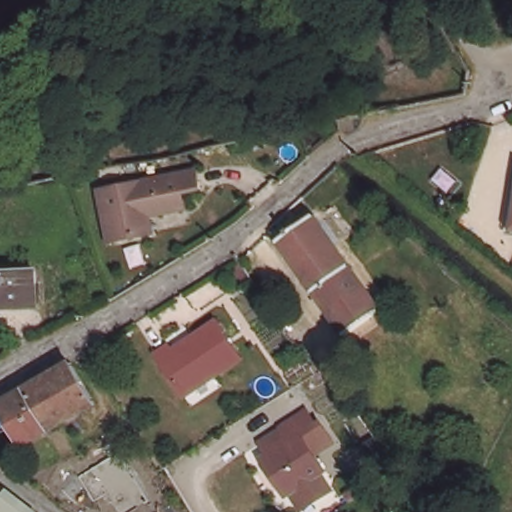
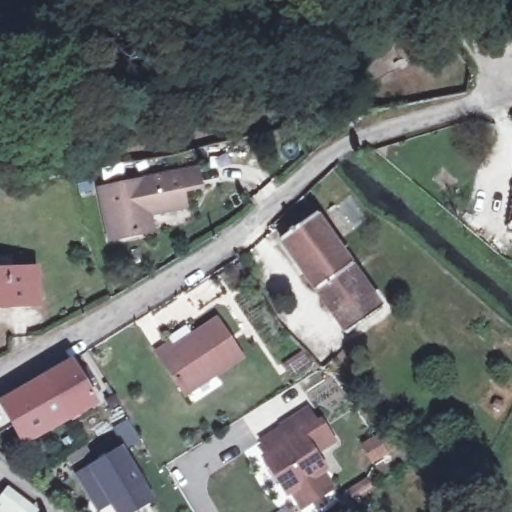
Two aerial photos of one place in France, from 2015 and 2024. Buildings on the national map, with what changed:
unchanged [(202,188),(184,192),(187,208),(150,215),(154,232),(113,240),(101,191),(198,170),(202,188)]
unchanged [(341,335),(281,240),(317,216),(377,312),(341,335)]
unchanged [(0,261),(32,260),(33,275),(27,275),(28,295),(0,296),(0,261)]
unchanged [(187,395),(157,350),(169,342),(174,350),(217,321),(242,358),(187,395)]
unchanged [(305,366),(307,367),(306,367),(287,380),(277,366),(297,353),(305,366)]
unchanged [(71,416),(49,430),(26,446),(10,417),(3,421),(7,426),(0,430),(0,403),(2,401),(13,395),(45,374),(67,360),(92,403),(71,416)]
unchanged [(317,429),(302,438),(327,474),(289,499),(265,463),(270,460),(261,446),(281,433),(307,415),(317,429)]
new [(87,467),(122,447),(157,500),(137,512),(114,512),(110,506),(99,512),(96,512),(75,475),(87,467)]
unchanged [(354,499),(349,492),(370,477),(375,485),(354,499)]
unchanged [(0,483),(23,502),(15,512),(2,512),(0,510),(0,483)]

